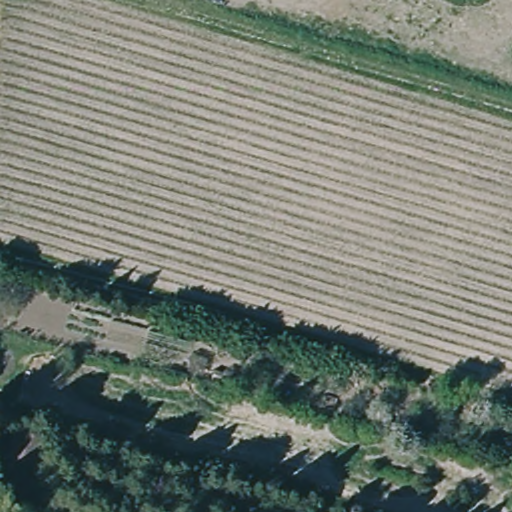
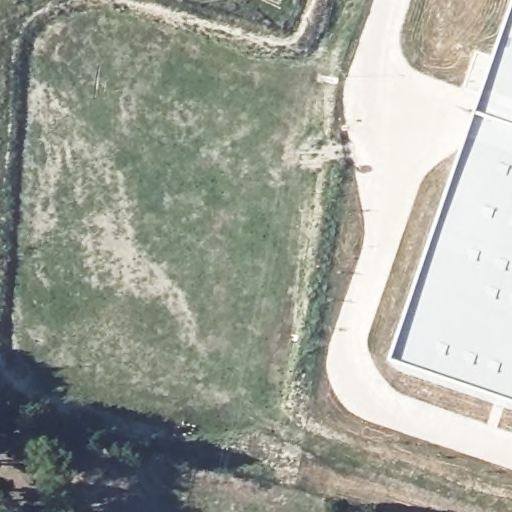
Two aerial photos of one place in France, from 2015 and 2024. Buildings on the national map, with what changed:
new [(512,41),(512,411),(399,372),(512,41)]
unchanged [(13,457),(21,426),(50,433),(41,465),(13,457)]

